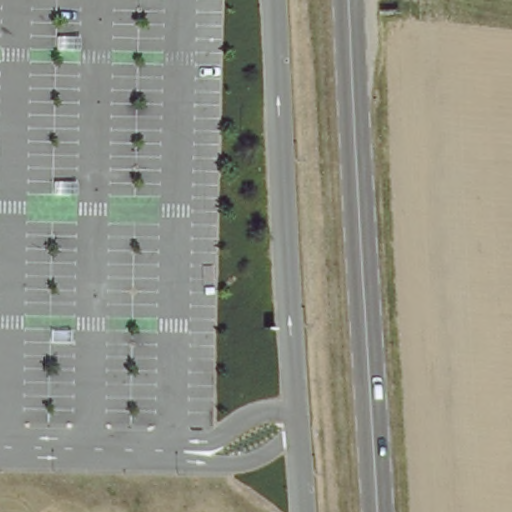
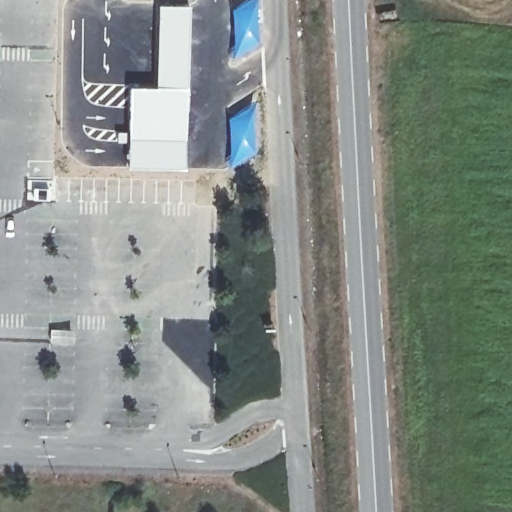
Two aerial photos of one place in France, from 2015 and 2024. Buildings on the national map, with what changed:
new [(157,2),(190,2),(190,84),(155,83),(157,2)]
new [(128,83),(155,83),(190,84),(185,166),(127,165),(128,83)]

